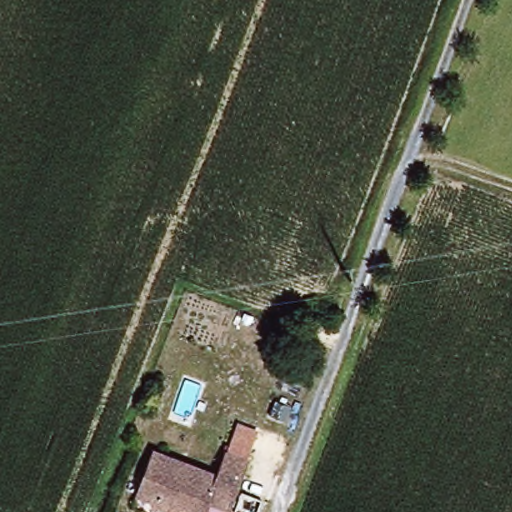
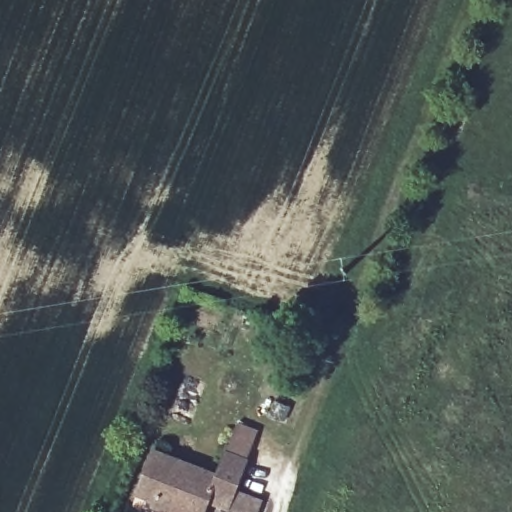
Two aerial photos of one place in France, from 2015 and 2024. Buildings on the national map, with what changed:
unchanged [(153,507),(157,500),(144,493),(159,453),(222,476),(231,451),(250,459),(235,498),(216,490),(208,512),(164,512),(153,507)]

